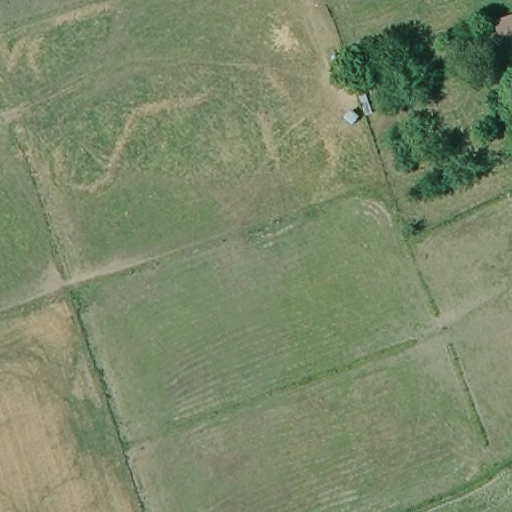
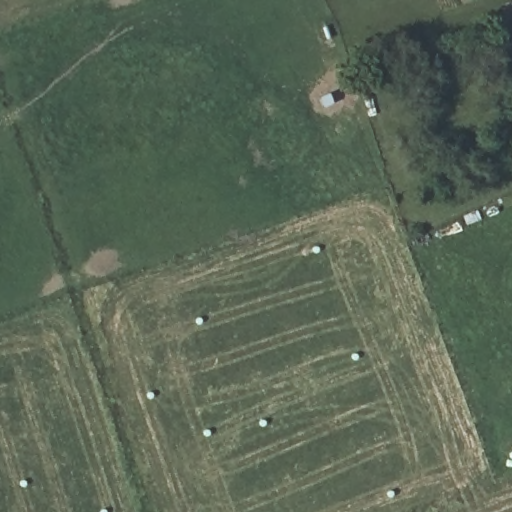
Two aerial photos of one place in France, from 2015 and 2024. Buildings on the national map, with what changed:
unchanged [(495,25),(512,19),(512,43),(501,46),(495,25)]

